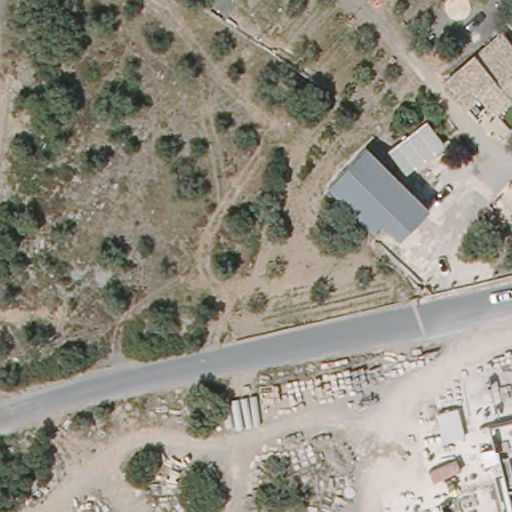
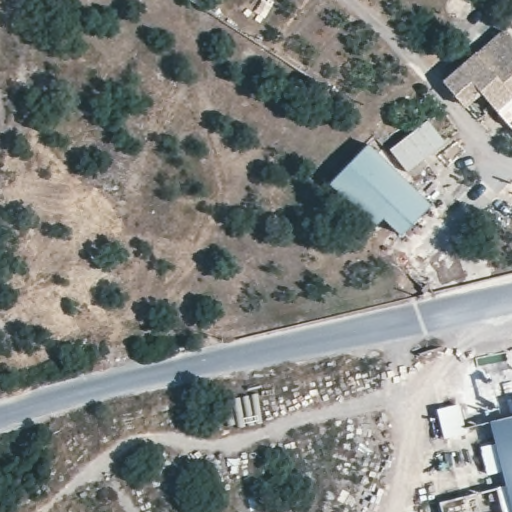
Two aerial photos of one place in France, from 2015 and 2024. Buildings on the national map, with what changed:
unchanged [(512,128),(480,93),(463,108),(441,85),(475,53),(481,60),(492,72),(512,54),(512,128)]
unchanged [(428,127),(443,147),(407,173),(393,154),(428,127)]
unchanged [(411,190),(409,192),(380,223),(373,230),(339,198),(372,164),(391,182),(397,176),(411,190)]
unchanged [(400,242),(380,223),(409,192),(429,211),(400,242)]
new [(497,485),(506,483),(490,421),(512,416),(512,512),(504,512),(499,491),(498,487),(497,485)]

